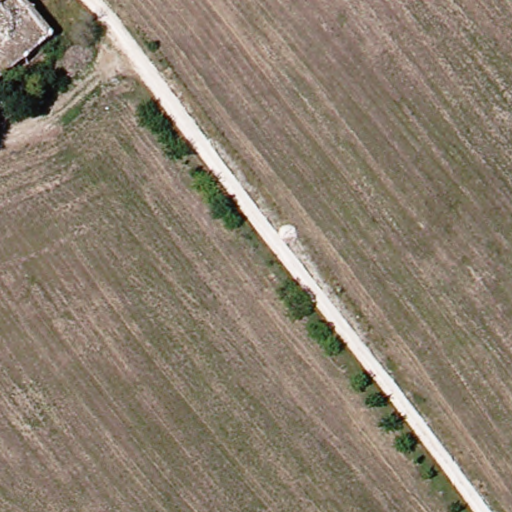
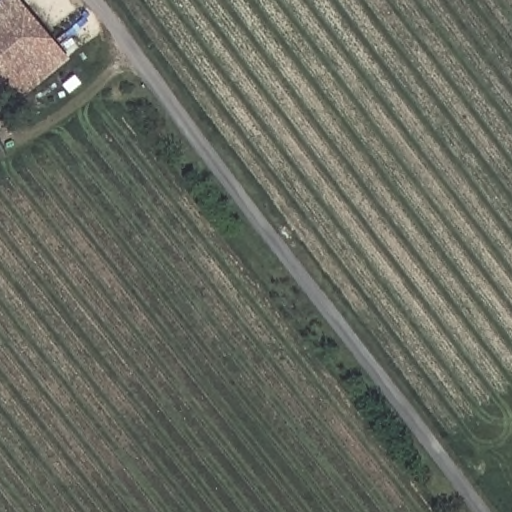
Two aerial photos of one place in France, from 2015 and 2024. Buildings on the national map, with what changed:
demolished [(0,0),(31,0),(54,27),(0,73),(0,0)]
new [(0,3),(3,0),(25,0),(56,34),(0,82),(0,3)]
new [(0,82),(56,34),(70,52),(13,102),(10,98),(0,87),(0,82)]

